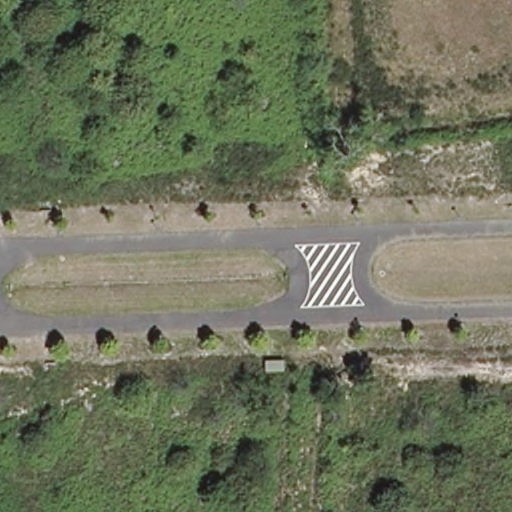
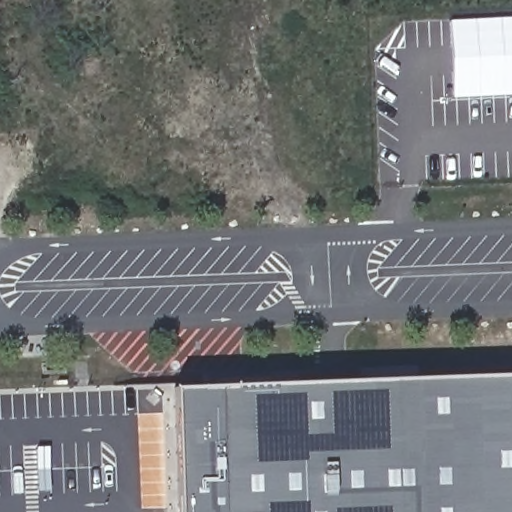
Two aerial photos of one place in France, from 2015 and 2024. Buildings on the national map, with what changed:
new [(452,98),(448,20),(512,18),(512,96),(452,98)]
new [(182,512),(176,390),(512,378),(512,512),(182,512)]

